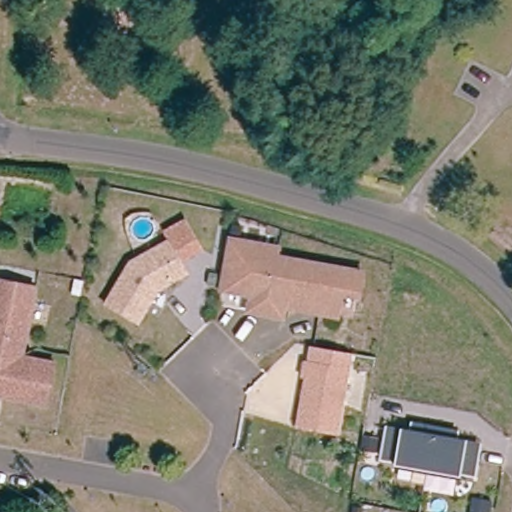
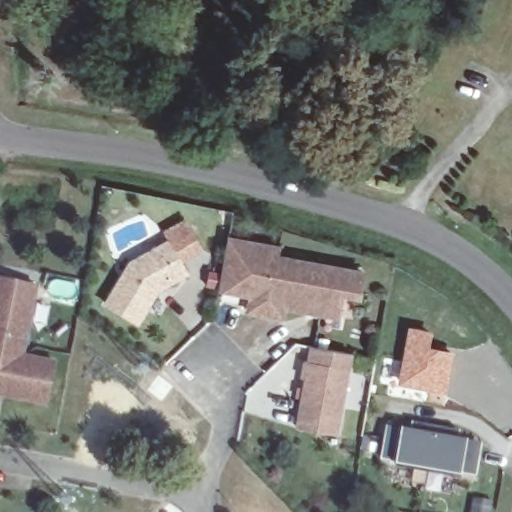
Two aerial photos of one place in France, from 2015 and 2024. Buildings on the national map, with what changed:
unchanged [(107,301),(132,260),(170,239),(166,230),(186,219),(202,248),(182,260),(189,272),(159,288),(139,321),(107,301)]
unchanged [(228,236),(278,245),(276,255),(363,270),(358,295),(342,291),(337,315),(284,305),(283,316),(248,310),(251,293),(219,287),(228,236)]
unchanged [(29,283),(14,354),(51,362),(43,403),(0,395),(0,277),(29,283)]
new [(408,325),(433,330),(430,345),(454,350),(446,395),(397,385),(408,325)]
unchanged [(297,426),(302,396),(304,387),(306,377),(302,376),(305,360),(309,360),(312,345),(351,352),(349,367),(336,434),(297,426)]
unchanged [(474,475),(459,472),(459,475),(395,463),(396,460),(381,457),(386,428),(411,432),(413,422),(457,430),(455,440),(480,445),(474,475)]
new [(472,496),(493,501),(491,512),(469,512),(472,496)]

